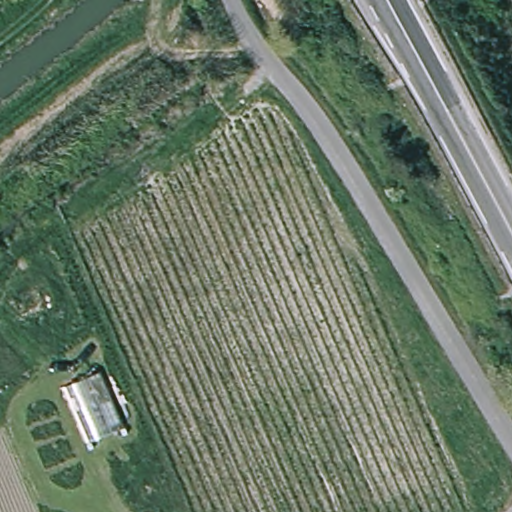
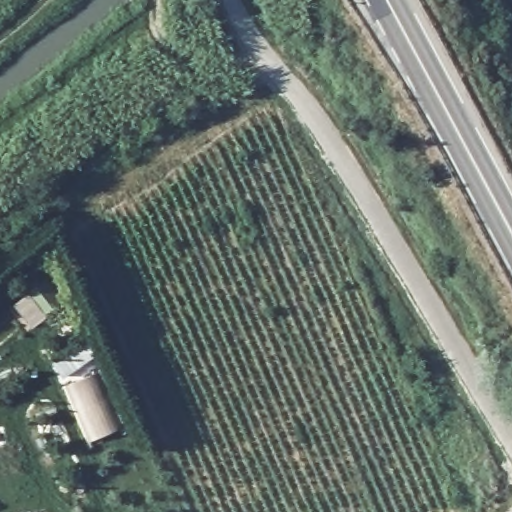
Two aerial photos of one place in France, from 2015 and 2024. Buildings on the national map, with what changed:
unchanged [(121,428),(89,443),(66,388),(99,375),(121,428)]

